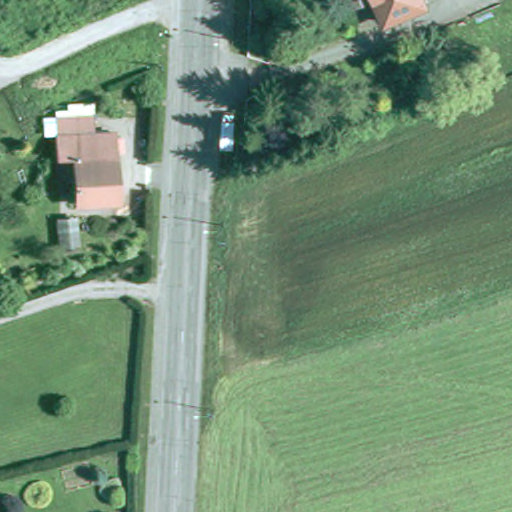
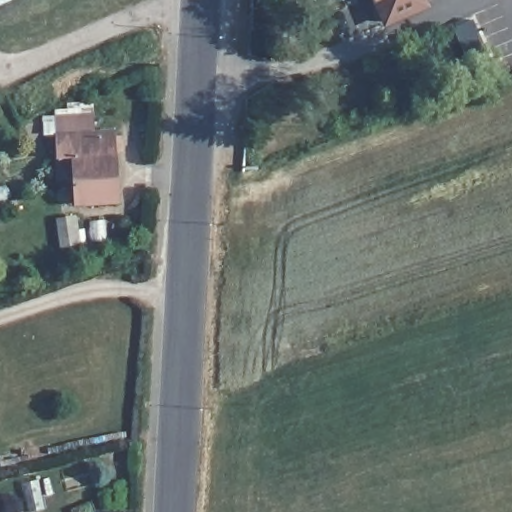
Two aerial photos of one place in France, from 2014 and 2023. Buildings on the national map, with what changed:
unchanged [(374,0),(425,0),(427,7),(386,25),(374,0)]
unchanged [(65,155),(64,117),(97,115),(97,133),(119,133),(122,198),(82,200),(81,176),(65,176),(65,155)]

